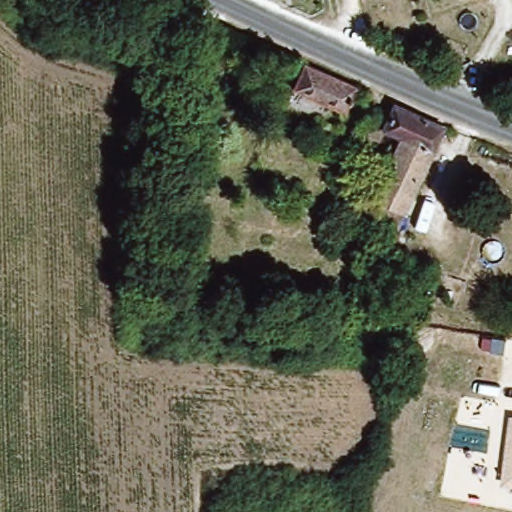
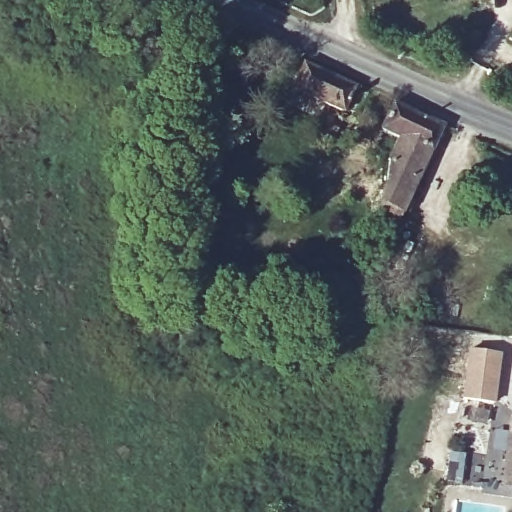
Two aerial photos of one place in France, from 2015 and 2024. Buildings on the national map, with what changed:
unchanged [(345,114),(298,93),(309,65),(357,86),(345,114)]
unchanged [(390,109),(396,98),(450,121),(402,224),(382,219),(383,195),(398,159),(350,139),(360,114),(373,117),(380,106),(390,109)]
unchanged [(322,131),(319,141),(299,134),(301,125),(322,131)]
new [(468,350),(498,355),(489,404),(460,399),(468,350)]
unchanged [(512,486),(500,485),(509,415),(512,416),(512,486)]

